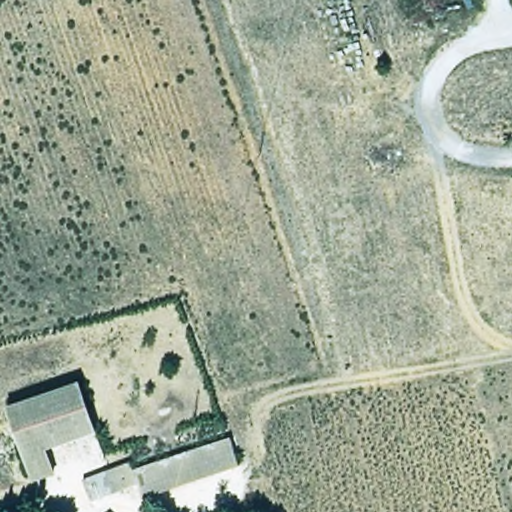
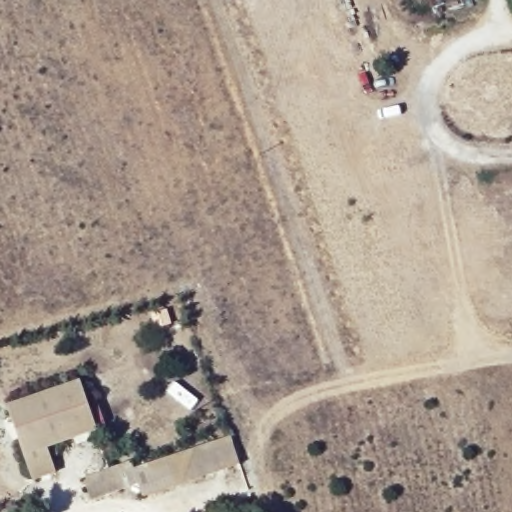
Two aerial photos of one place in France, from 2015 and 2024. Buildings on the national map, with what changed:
unchanged [(7,404),(80,383),(94,433),(45,447),(54,476),(30,483),(7,404)]
unchanged [(235,468),(137,499),(133,487),(85,504),(77,481),(124,464),(127,471),(225,439),(235,468)]

